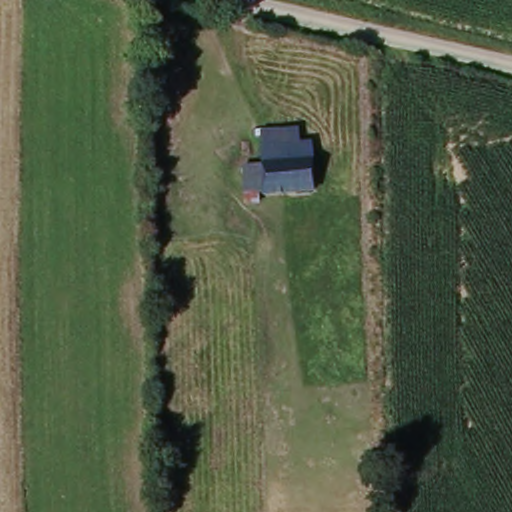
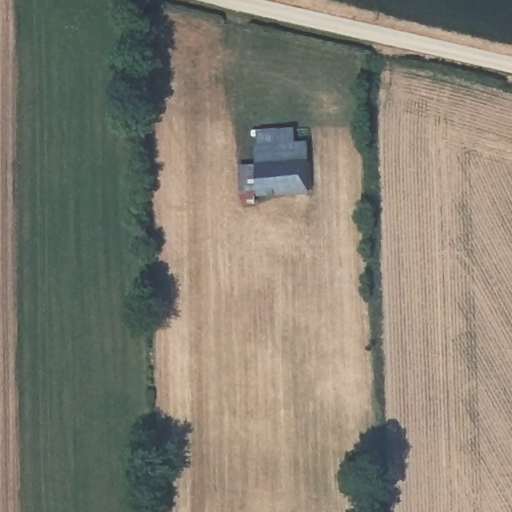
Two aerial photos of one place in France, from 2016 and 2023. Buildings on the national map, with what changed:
unchanged [(261,194),(260,205),(242,204),(242,164),(259,163),(258,130),(300,130),(300,144),(310,143),(310,193),(261,194)]

